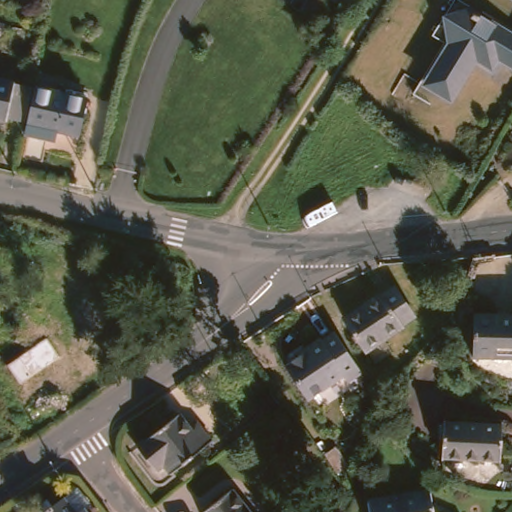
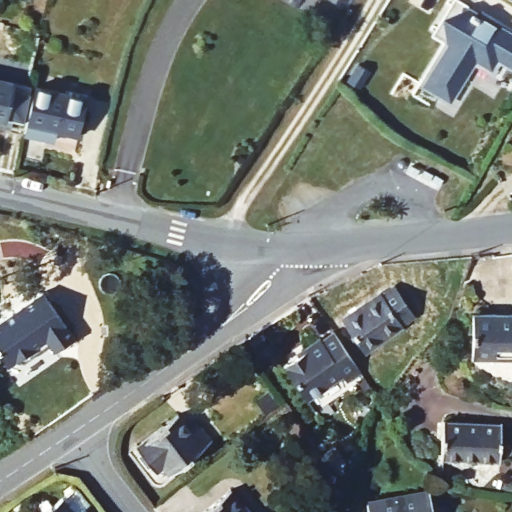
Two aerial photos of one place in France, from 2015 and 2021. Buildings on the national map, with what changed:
unchanged [(332,0),(352,0),(347,9),(332,0)]
unchanged [(441,95),(438,98),(421,87),(423,84),(420,82),(436,57),(447,38),(445,36),(441,34),(445,27),(444,20),(452,17),(457,6),(461,9),(463,5),(512,36),(512,64),(493,52),(487,62),(472,53),(460,72),(443,97),(441,95)]
unchanged [(17,124),(0,121),(0,83),(8,85),(25,87),(17,124)]
unchanged [(72,135),(22,126),(30,91),(79,100),(72,135)]
new [(74,337),(54,351),(48,343),(24,361),(17,360),(8,366),(0,354),(0,323),(43,292),(74,337)]
unchanged [(409,318),(396,327),(398,331),(365,355),(341,320),(375,298),(377,301),(391,292),(409,318)]
unchanged [(472,358),(473,318),(512,318),(512,358),(472,358)]
unchanged [(347,385),(342,378),(307,401),(284,367),(307,352),(305,350),(320,340),(322,343),(334,335),(344,350),(361,375),(347,385)]
demolished [(58,356),(16,383),(4,363),(46,338),(58,356)]
unchanged [(189,429),(198,423),(211,442),(170,473),(163,464),(155,470),(137,447),(179,415),(189,429)]
unchanged [(501,430),(498,465),(441,461),(443,425),(501,430)]
unchanged [(244,512),(199,512),(227,490),(244,512)]
unchanged [(36,509),(43,503),(48,510),(59,502),(73,492),(86,510),(84,512),(38,512),(36,509)]
unchanged [(365,503),(428,495),(431,512),(366,512),(365,503)]

